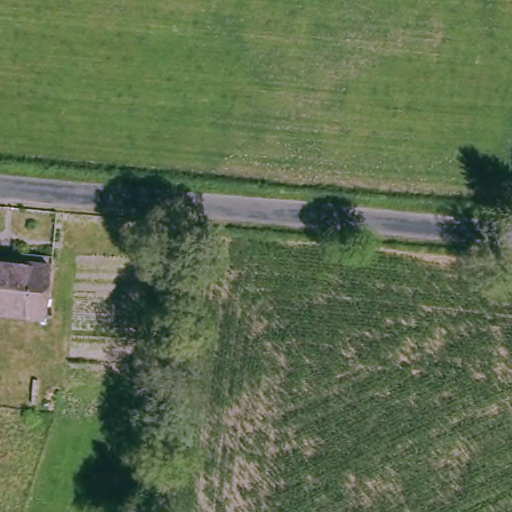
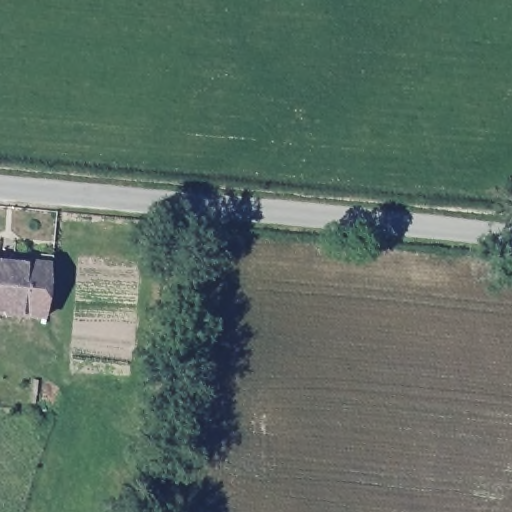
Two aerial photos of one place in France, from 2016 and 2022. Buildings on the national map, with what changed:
unchanged [(46,259),(42,318),(0,314),(0,255),(46,259)]

